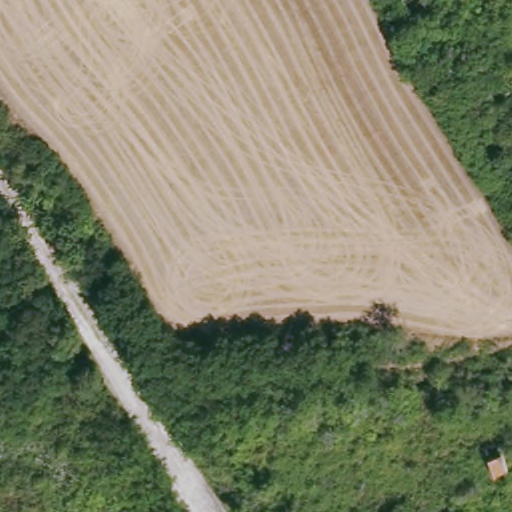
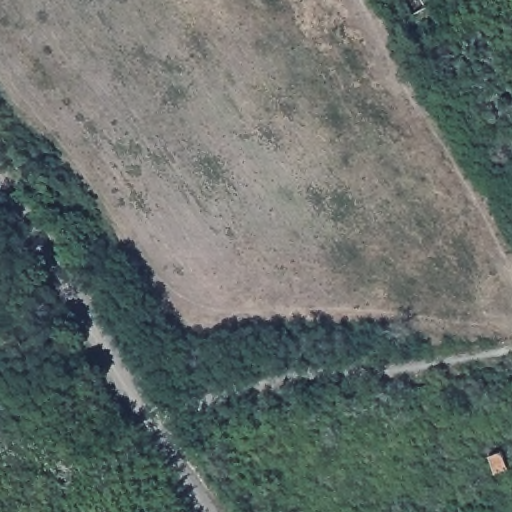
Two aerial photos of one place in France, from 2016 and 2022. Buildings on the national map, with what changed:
unchanged [(502,457),(508,474),(493,480),(485,461),(502,457)]

